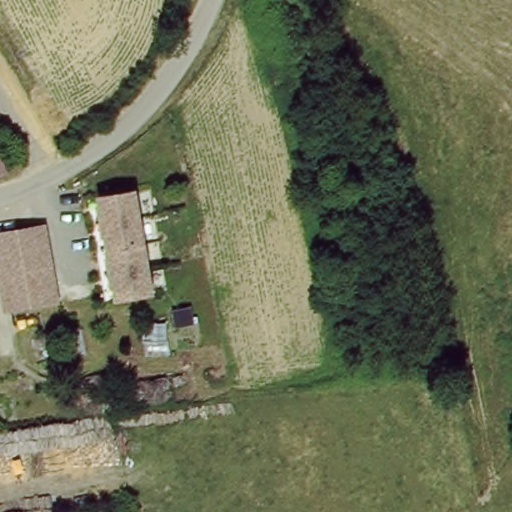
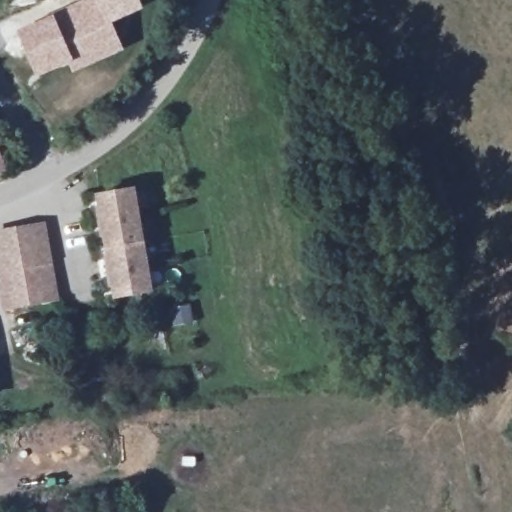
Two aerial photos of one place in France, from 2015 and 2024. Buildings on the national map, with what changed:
new [(76,0),(141,0),(145,9),(112,24),(125,50),(73,73),(69,65),(75,62),(52,11),(76,0)]
new [(52,11),(75,62),(69,65),(38,79),(15,30),(52,11)]
unchanged [(5,172),(0,173),(0,157),(5,172)]
unchanged [(138,190),(154,292),(117,297),(97,195),(138,190)]
unchanged [(47,222),(60,302),(7,311),(0,278),(0,231),(47,222)]
unchanged [(10,387),(0,388),(0,381),(8,380),(10,387)]

